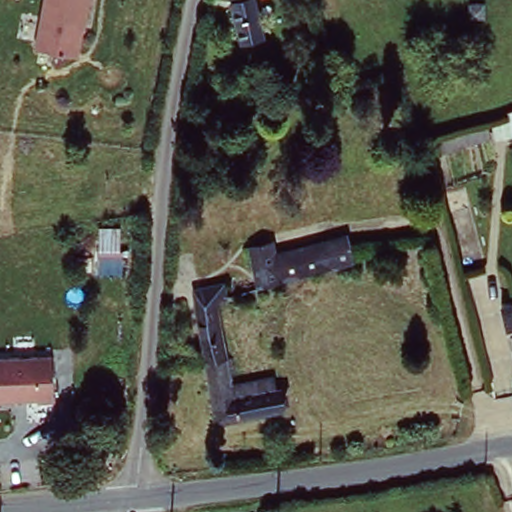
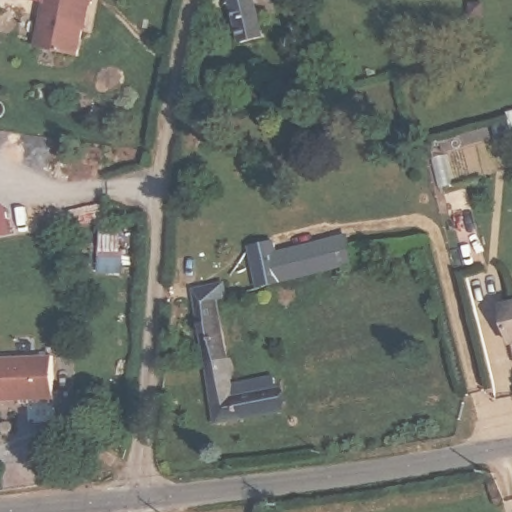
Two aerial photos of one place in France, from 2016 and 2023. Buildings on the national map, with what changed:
unchanged [(34,45),(42,0),(90,0),(77,55),(34,45)]
unchanged [(245,43),(236,7),(240,5),(239,0),(260,0),(269,37),(245,43)]
unchanged [(485,4),(484,14),(473,14),(474,4),(485,4)]
new [(5,211),(8,237),(0,238),(0,212),(5,211)]
unchanged [(312,272),(282,279),(277,253),(332,239),(338,265),(312,272)]
unchanged [(250,245),(274,240),(277,253),(282,279),(257,285),(250,245)]
unchanged [(183,296),(213,292),(217,307),(213,308),(206,309),(216,365),(195,369),(183,296)]
unchanged [(512,345),(505,346),(495,302),(512,298),(512,345)]
unchanged [(48,356),(48,404),(0,403),(0,356),(48,356)]
unchanged [(216,365),(222,364),(226,382),(219,383),(221,392),(263,384),(265,398),(271,399),(272,419),(205,429),(195,369),(216,365)]

